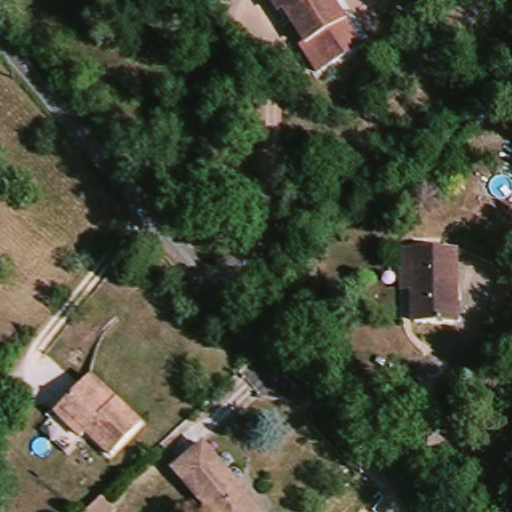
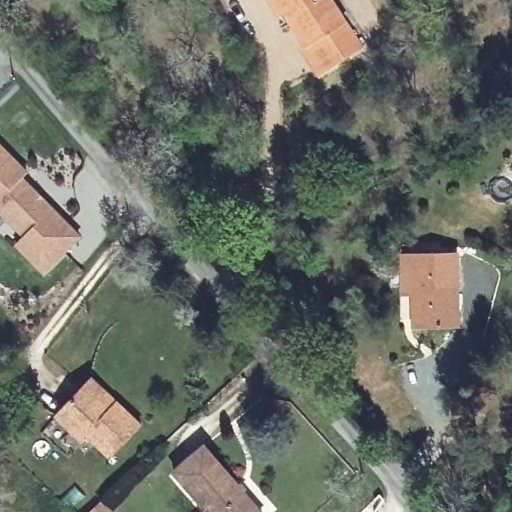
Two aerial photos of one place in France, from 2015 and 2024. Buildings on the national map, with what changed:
unchanged [(362,48),(319,76),(302,51),(307,47),(285,12),(278,17),(267,0),(331,0),(362,48)]
new [(31,174),(26,179),(83,238),(47,273),(20,245),(28,237),(0,209),(0,143),(31,174)]
unchanged [(459,324),(415,325),(414,293),(403,293),(402,257),(413,256),(458,255),(459,324)]
unchanged [(112,458),(88,435),(82,441),(55,415),(84,385),(91,378),(118,404),(142,427),(112,458)]
unchanged [(203,512),(175,479),(205,453),(255,512),(203,512)]
unchanged [(116,512),(91,512),(105,499),(116,512)]

